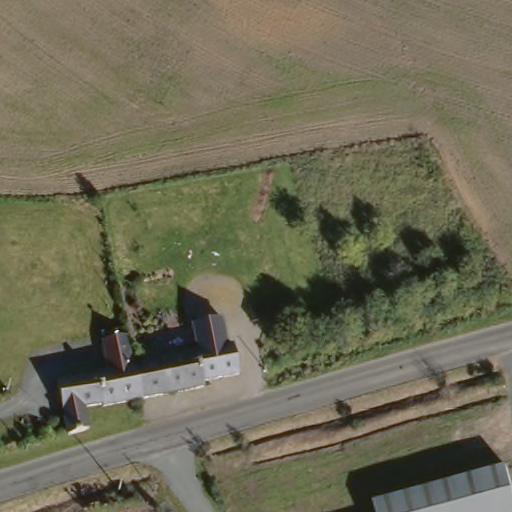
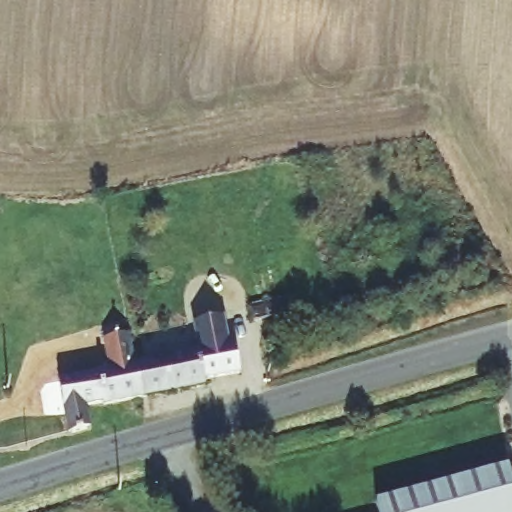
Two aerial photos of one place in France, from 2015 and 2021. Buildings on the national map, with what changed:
unchanged [(259,322),(284,316),(288,329),(262,334),(259,322)]
unchanged [(64,434),(55,384),(94,376),(93,374),(105,371),(101,342),(124,338),(129,369),(162,362),(159,341),(228,328),(236,369),(208,375),(209,381),(166,390),(135,397),(101,404),(80,409),(83,428),(64,434)]
unchanged [(512,469),(512,504),(474,512),(465,512),(464,509),(451,512),(389,512),(386,501),(512,469)]
unchanged [(512,504),(512,512),(474,512),(512,504)]
unchanged [(464,509),(465,512),(451,512),(464,509)]

